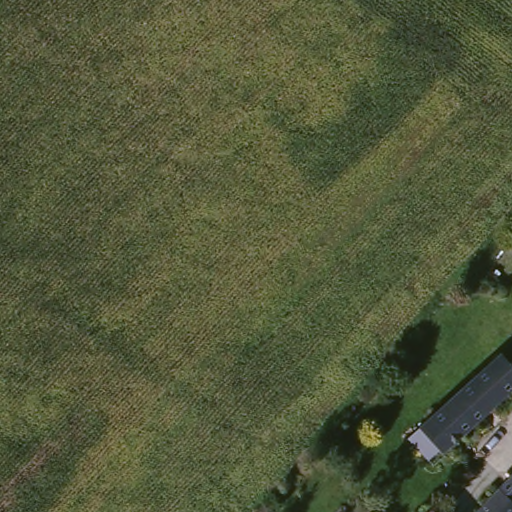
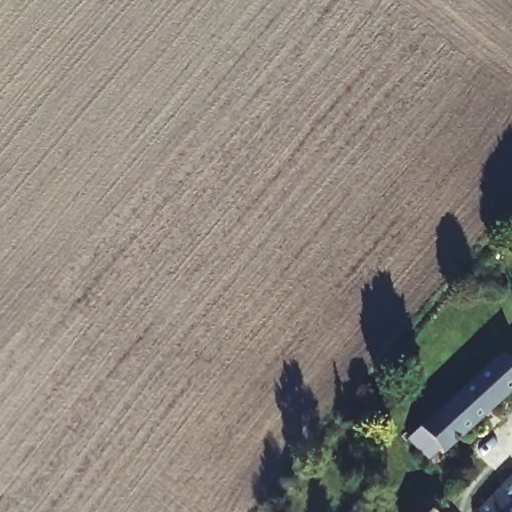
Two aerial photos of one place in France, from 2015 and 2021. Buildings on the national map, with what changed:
unchanged [(415,435),(508,351),(512,356),(512,393),(433,459),(415,435)]
unchanged [(503,489),(512,497),(512,512),(487,512),(483,508),(503,489)]

